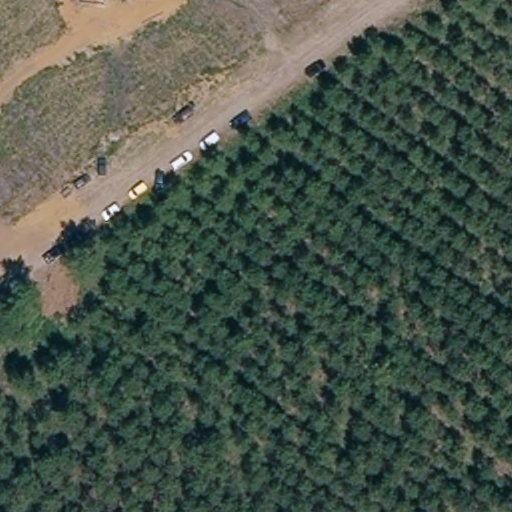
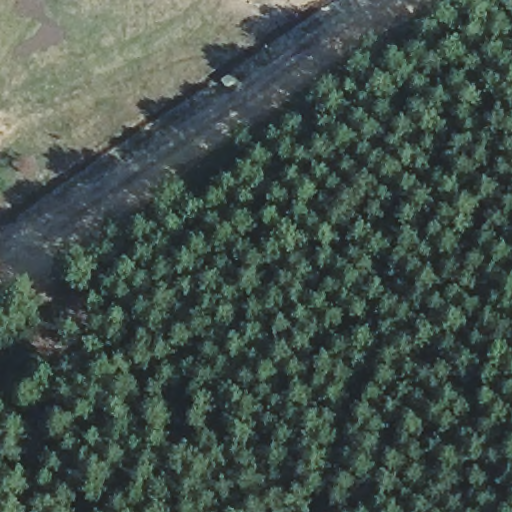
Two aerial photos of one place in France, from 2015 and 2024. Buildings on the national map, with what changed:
[]

